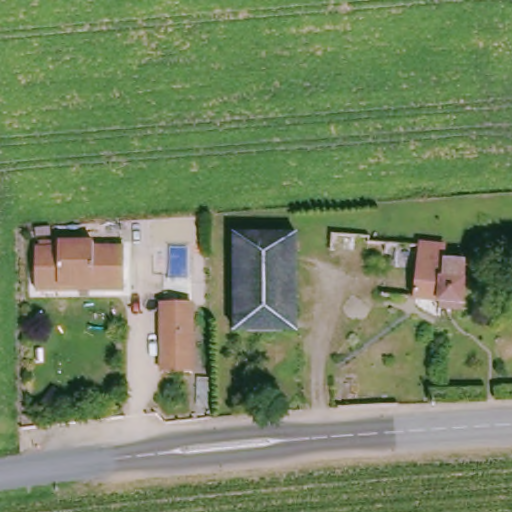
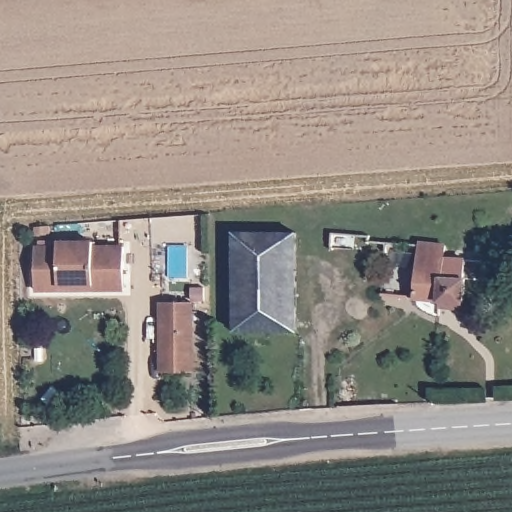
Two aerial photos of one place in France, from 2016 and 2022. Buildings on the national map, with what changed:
unchanged [(229,235),(292,233),(294,328),(231,329),(229,235)]
unchanged [(104,286),(91,287),(90,279),(58,280),(59,285),(34,284),(35,240),(58,240),(61,234),(90,236),(90,241),(122,242),(122,264),(121,287),(104,286)]
unchanged [(444,248),(445,261),(465,261),(464,311),(445,310),(445,304),(419,304),(420,248),(444,248)]
unchanged [(189,307),(188,373),(157,373),(157,305),(189,307)]

